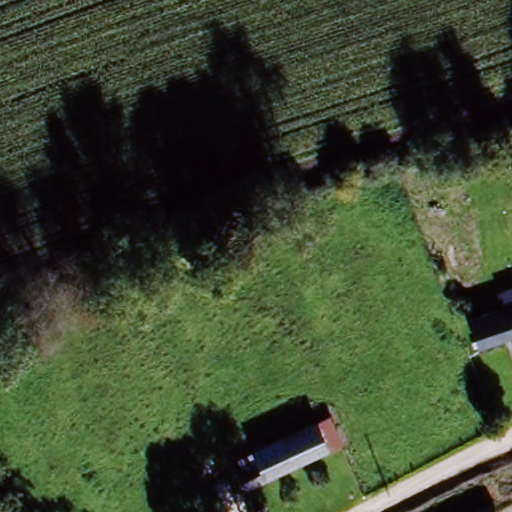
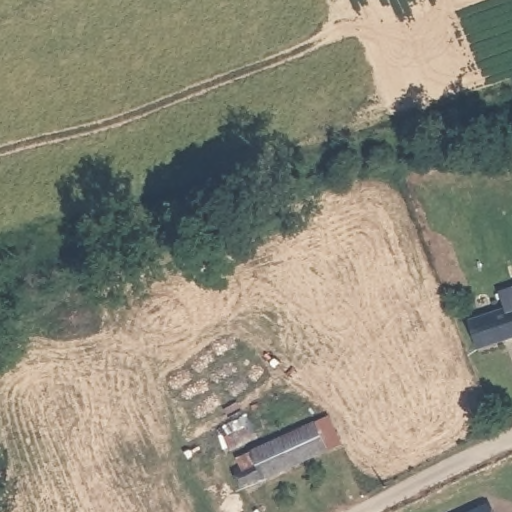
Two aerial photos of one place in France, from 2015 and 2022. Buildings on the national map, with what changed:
unchanged [(511,146),(512,146),(512,150),(511,146)]
unchanged [(471,354),(462,328),(498,316),(494,304),(512,298),(512,340),(471,354)]
unchanged [(229,470),(234,468),(229,458),(318,417),(331,445),(238,488),(229,470)]
unchanged [(493,512),(462,512),(488,500),(493,512)]

